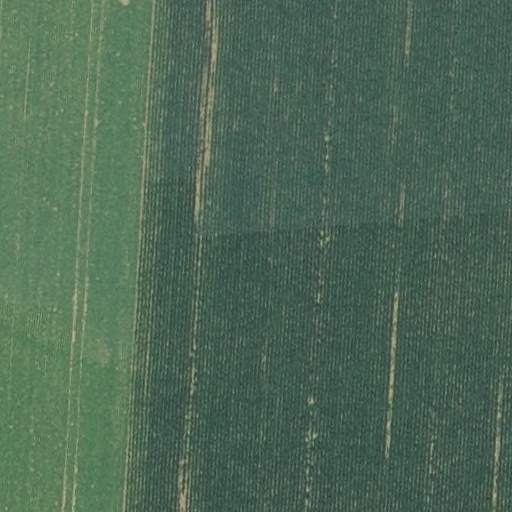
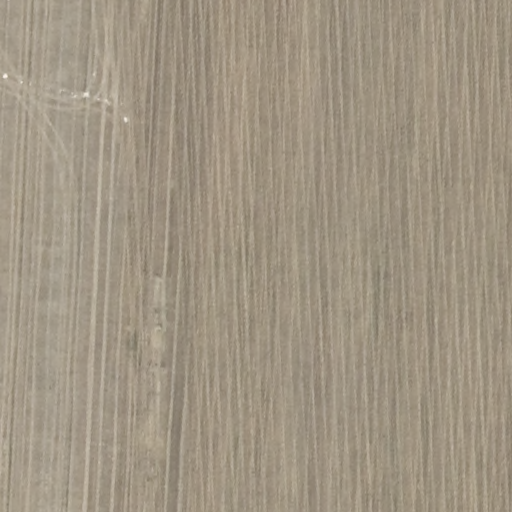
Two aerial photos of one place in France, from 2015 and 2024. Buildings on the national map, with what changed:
[]

